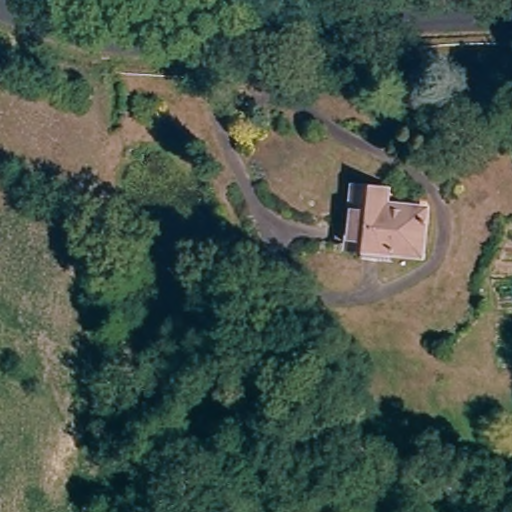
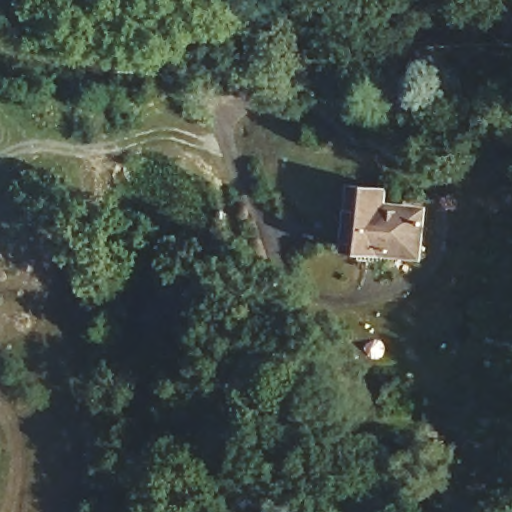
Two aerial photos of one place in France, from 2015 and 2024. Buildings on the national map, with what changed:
unchanged [(352,191),(375,192),(385,192),(386,208),(423,209),(422,255),(349,253),(352,191)]
unchanged [(302,339),(303,372),(281,373),(281,339),(302,339)]

